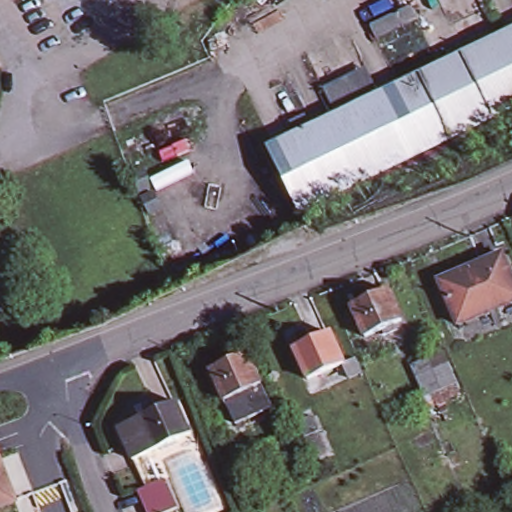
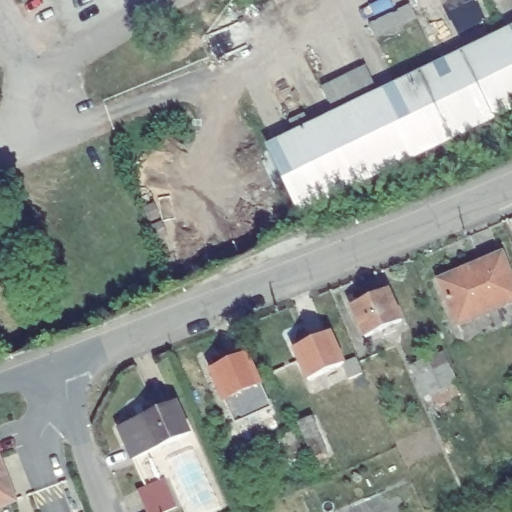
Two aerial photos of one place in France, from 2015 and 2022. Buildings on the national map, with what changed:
unchanged [(404,6),(409,17),(367,37),(362,25),(404,6)]
unchanged [(308,130),(334,118),(377,96),(512,31),(512,106),(297,211),(267,150),(293,138),(286,124),(302,116),(308,130)]
unchanged [(334,118),(320,90),(364,69),(377,96),(334,118)]
unchanged [(502,257),(512,279),(512,304),(459,326),(441,283),(502,257)]
unchanged [(389,337),(387,332),(370,339),(356,308),(392,292),(406,323),(399,326),(401,332),(389,337)]
unchanged [(361,376),(349,382),(342,367),(307,382),(294,351),(330,335),(342,366),(355,360),(361,376)]
unchanged [(235,426),(224,402),(210,371),(246,355),(260,387),(270,409),(235,426)]
unchanged [(444,405),(440,395),(435,397),(422,365),(438,359),(450,391),(455,401),(444,405)]
unchanged [(118,430),(139,421),(174,405),(188,436),(181,439),(152,452),(152,451),(130,460),(118,430)]
unchanged [(306,458),(298,439),(292,423),(305,417),(312,433),(320,453),(306,458)]
unchanged [(286,434),(294,451),(265,463),(257,446),(286,434)]
unchanged [(0,506),(0,446),(20,499),(0,506)]
unchanged [(169,481),(182,510),(177,512),(149,512),(141,492),(169,481)]

